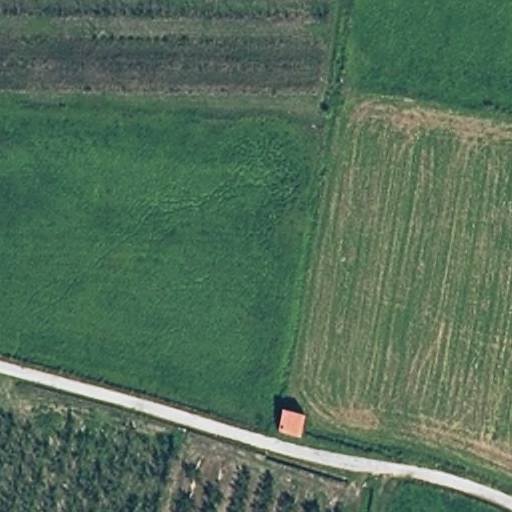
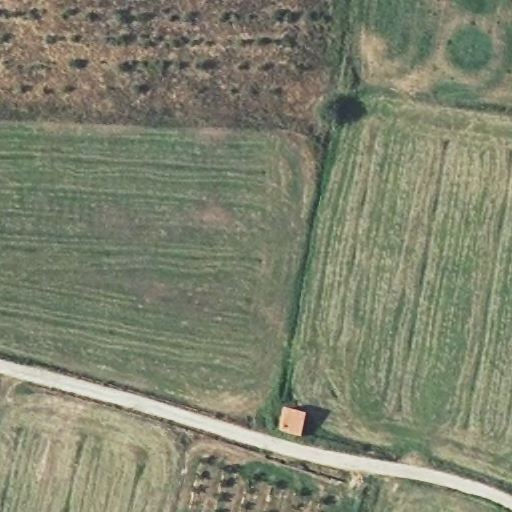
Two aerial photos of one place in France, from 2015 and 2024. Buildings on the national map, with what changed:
unchanged [(305,415),(302,438),(276,431),(279,410),(305,415)]

